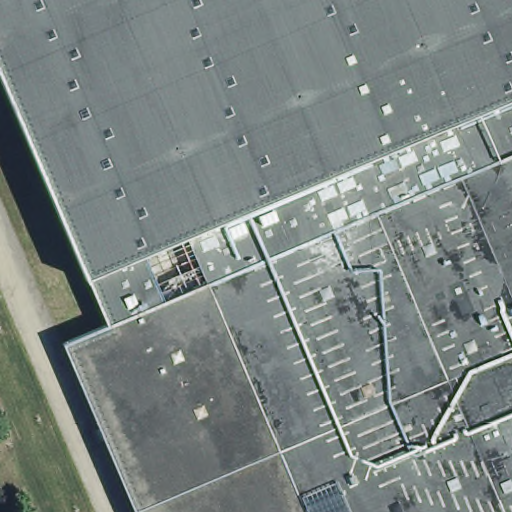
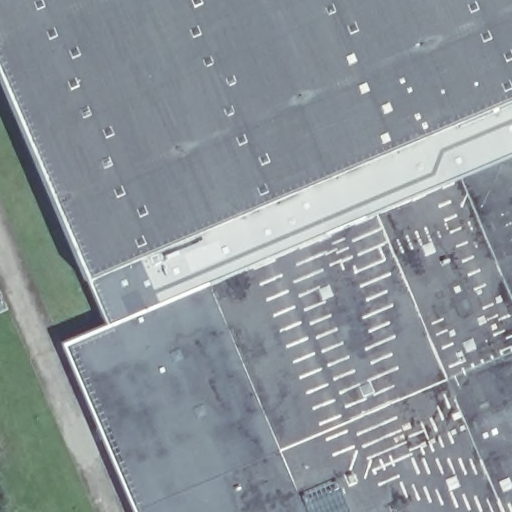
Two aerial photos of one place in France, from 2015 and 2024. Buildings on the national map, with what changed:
unchanged [(67,337),(113,317),(94,272),(90,273),(0,62),(0,0),(512,0),(512,512),(142,512),(67,337)]

